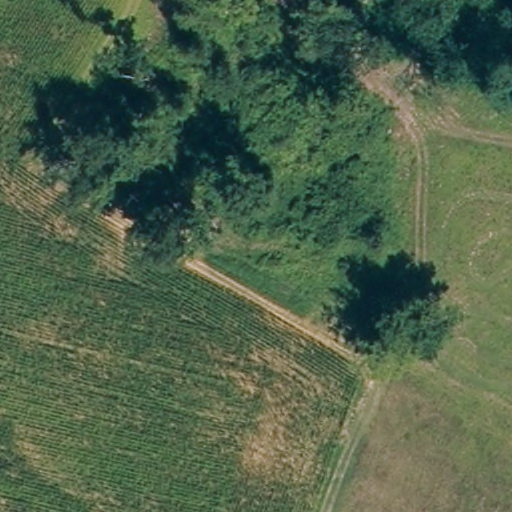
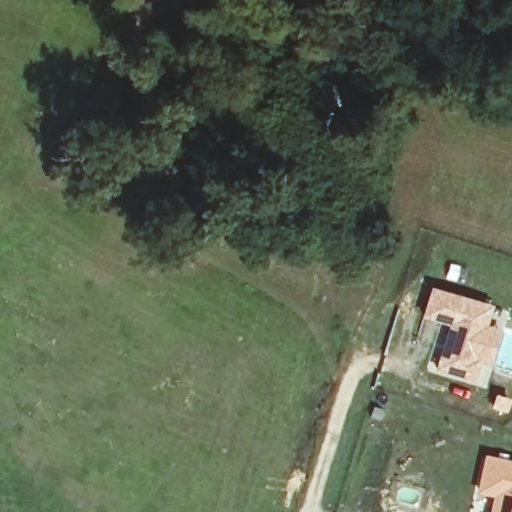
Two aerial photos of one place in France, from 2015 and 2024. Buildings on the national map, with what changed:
new [(433,291),(491,308),(476,361),(480,362),(474,381),(439,371),(452,326),(425,317),(433,291)]
new [(512,467),(512,512),(493,512),(496,497),(479,494),(486,461),(512,467)]

